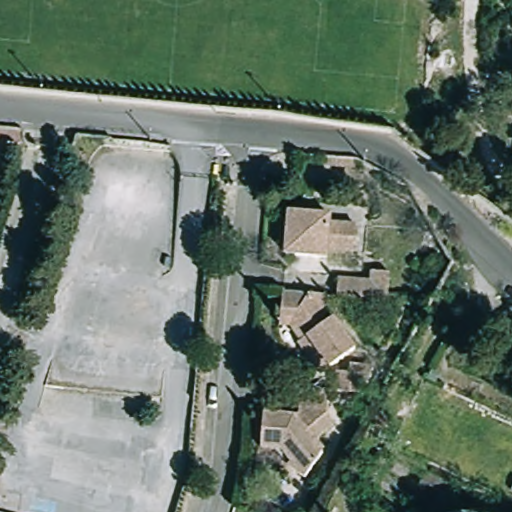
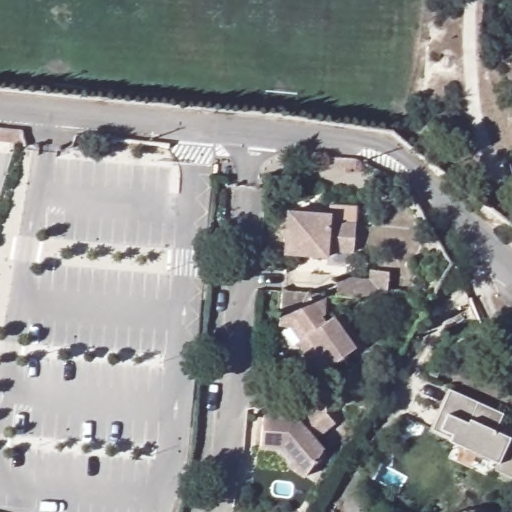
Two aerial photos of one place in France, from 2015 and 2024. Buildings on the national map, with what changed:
unchanged [(21,140),(0,138),(0,128),(22,130),(21,140)]
unchanged [(330,228),(356,230),(354,257),(327,256),(327,262),(285,259),(288,217),(330,221),(330,228)]
unchanged [(389,272),(387,301),(380,301),(336,297),(338,278),(371,281),(371,271),(389,272)]
unchanged [(355,349),(321,373),(299,343),(301,342),(290,327),(279,326),(282,292),(304,293),(307,294),(320,312),(325,307),(355,349)]
unchanged [(358,394),(335,392),(336,371),(349,372),(350,363),(372,365),(358,394)]
unchanged [(326,413),(335,423),(314,441),(323,451),(314,464),(304,477),(287,466),(291,462),(281,450),(260,448),(263,414),(295,417),(303,411),(304,389),(328,391),(326,413)]
new [(496,471),(500,465),(451,443),(430,432),(449,390),(504,415),(495,431),(511,438),(512,435),(512,478),(496,471)]

